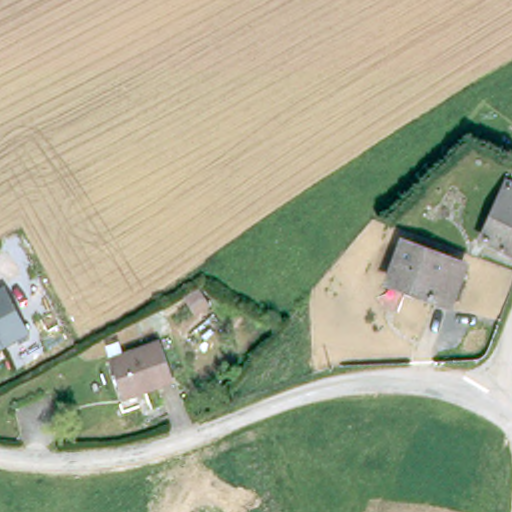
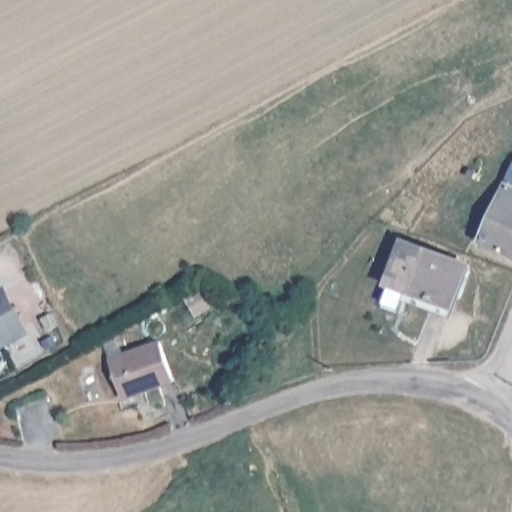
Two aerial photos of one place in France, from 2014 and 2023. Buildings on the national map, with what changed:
unchanged [(512,184),(512,272),(480,258),(512,184)]
unchanged [(443,296),(440,301),(397,285),(412,246),(475,269),(463,302),(443,296)]
unchanged [(5,301),(27,342),(0,355),(0,303),(5,301)]
unchanged [(125,399),(111,361),(162,343),(176,381),(125,399)]

